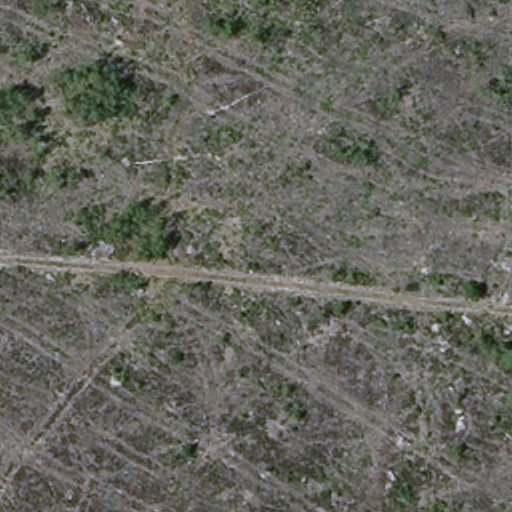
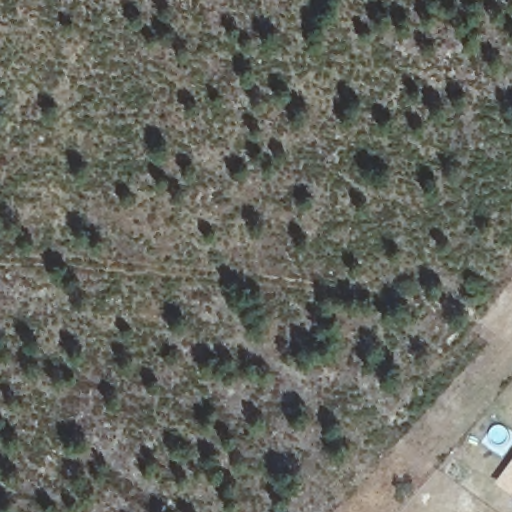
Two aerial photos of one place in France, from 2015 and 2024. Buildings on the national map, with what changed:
new [(498,485),(512,466),(512,495),(498,485)]

